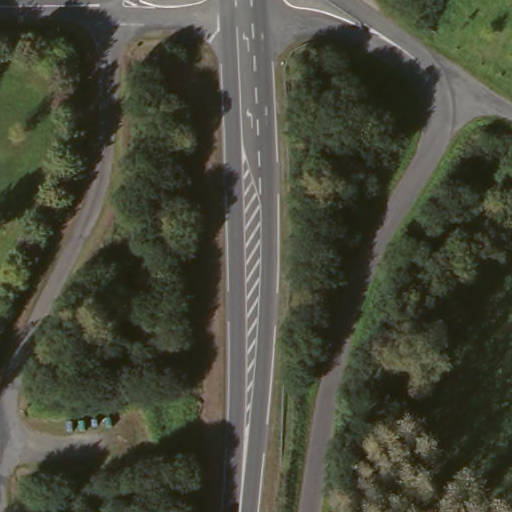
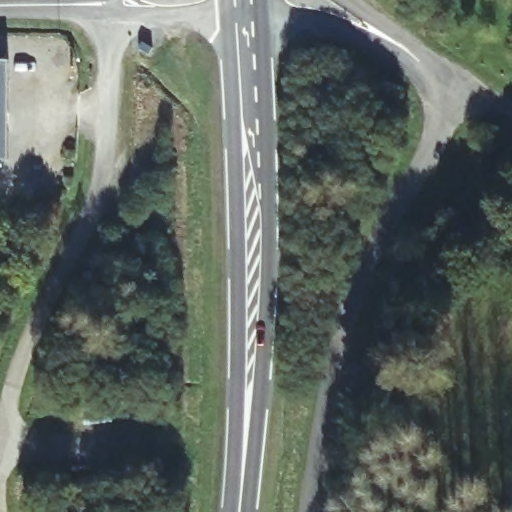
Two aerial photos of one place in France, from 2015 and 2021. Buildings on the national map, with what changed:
new [(7,159),(0,159),(0,62),(8,62),(7,159)]

